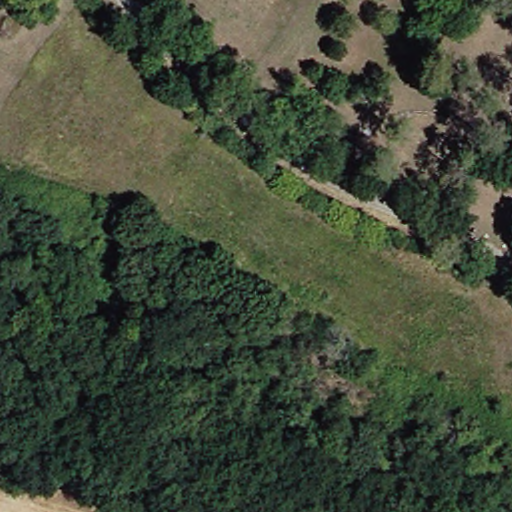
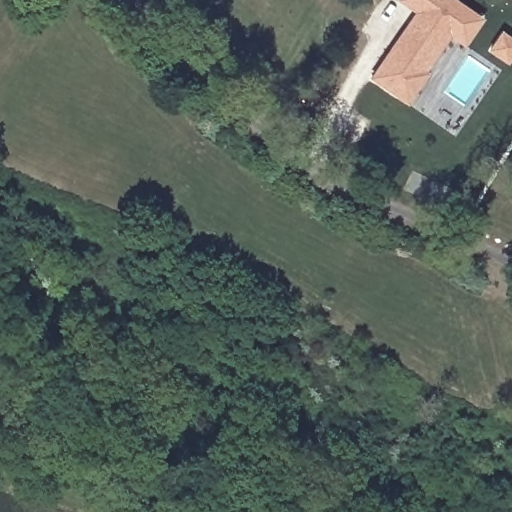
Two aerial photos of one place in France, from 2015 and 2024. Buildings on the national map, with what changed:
new [(464,48),(449,38),(425,73),(428,75),(407,105),(368,78),(413,14),(397,1),(397,0),(455,0),(484,19),(464,48)]
new [(506,66),(486,52),(500,31),(512,40),(512,57),(506,66)]

